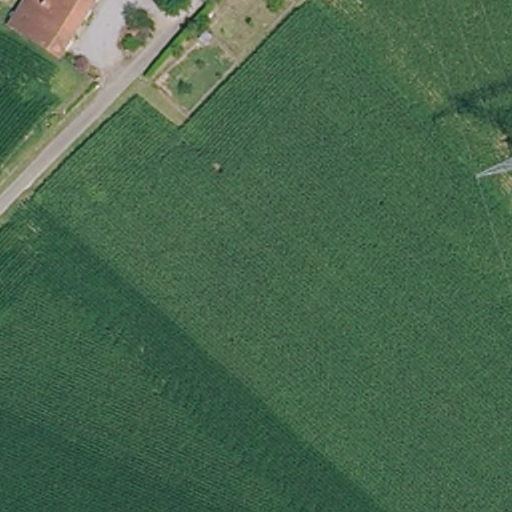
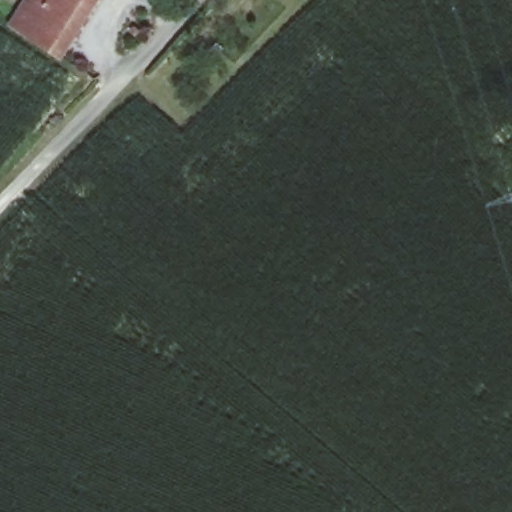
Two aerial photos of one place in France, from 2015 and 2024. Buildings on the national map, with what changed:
unchanged [(52,53),(14,23),(6,16),(20,0),(94,0),(80,20),(52,53)]

